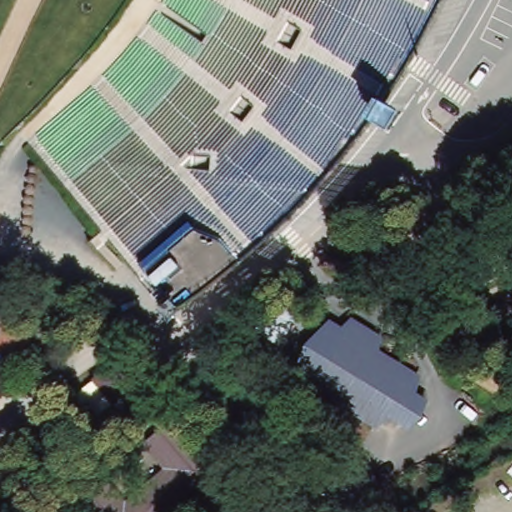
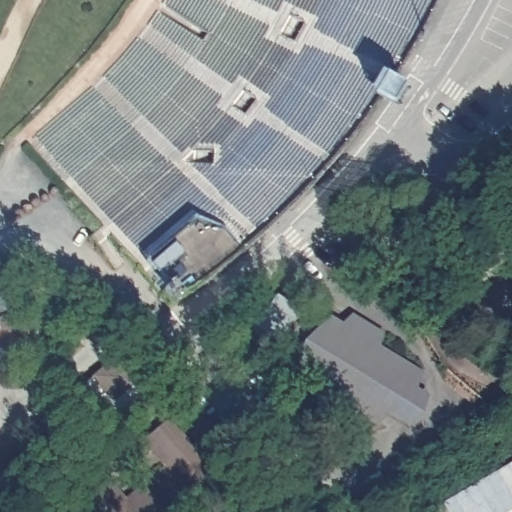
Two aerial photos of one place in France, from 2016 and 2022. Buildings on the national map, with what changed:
unchanged [(381,95),(336,154),(267,231),(218,275),(168,312),(100,230),(25,142),(98,79),(145,30),(163,0),(435,0),(414,44),(381,95)]
unchanged [(21,352),(0,356),(0,314),(15,311),(21,352)]
unchanged [(346,322),(356,316),(383,330),(382,348),(421,372),(417,391),(426,397),(421,415),(410,428),(387,417),(378,426),(295,376),(304,343),(332,316),(346,322)]
unchanged [(129,361),(145,380),(113,406),(97,387),(129,361)]
unchanged [(105,465),(126,490),(165,457),(144,432),(170,410),(230,480),(194,512),(100,512),(79,487),(105,465)]
new [(510,512),(442,512),(439,506),(512,465),(512,511),(510,512)]
unchanged [(22,501),(0,503),(0,478),(20,476),(22,501)]

